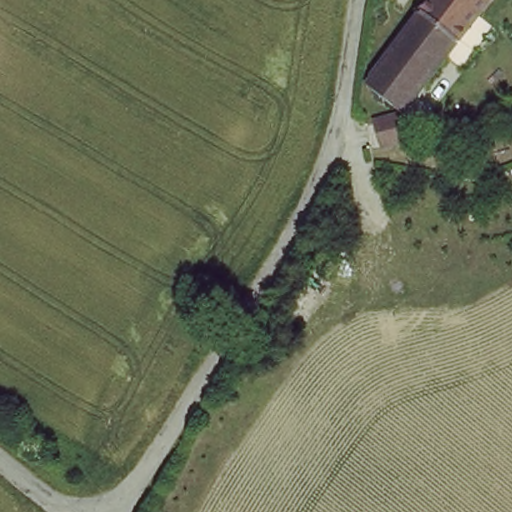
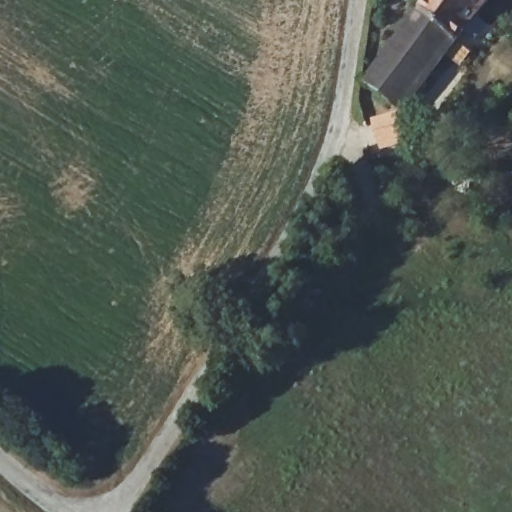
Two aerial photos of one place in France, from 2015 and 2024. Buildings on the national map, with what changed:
unchanged [(373,75),(435,0),(488,0),(405,104),(373,75)]

